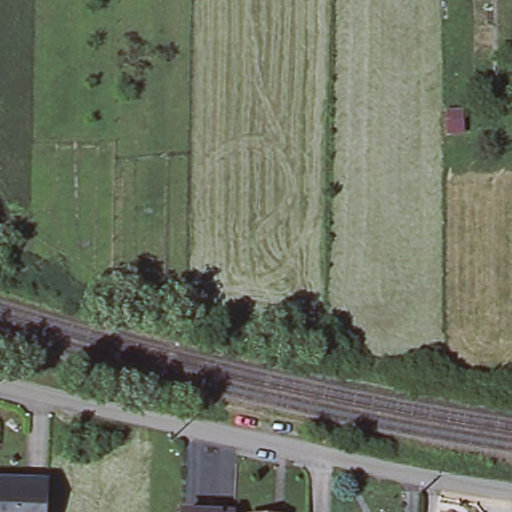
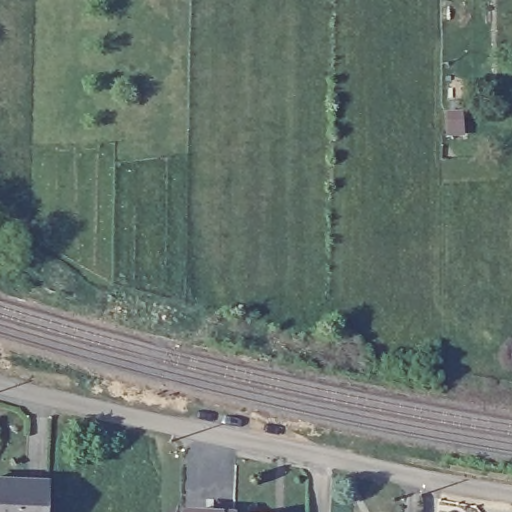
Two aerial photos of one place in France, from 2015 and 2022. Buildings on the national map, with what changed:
unchanged [(28,485),(49,487),(48,512),(0,512),(0,484),(28,485)]

